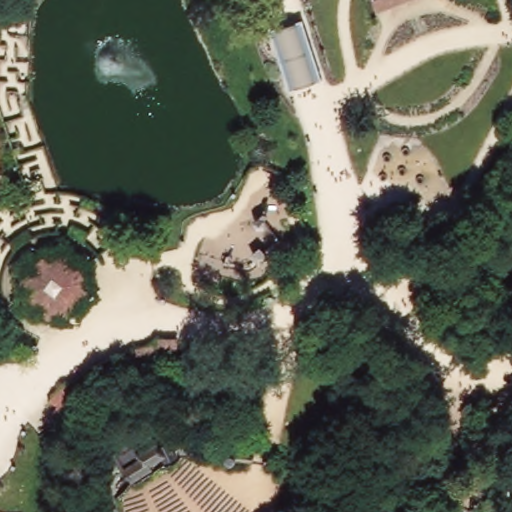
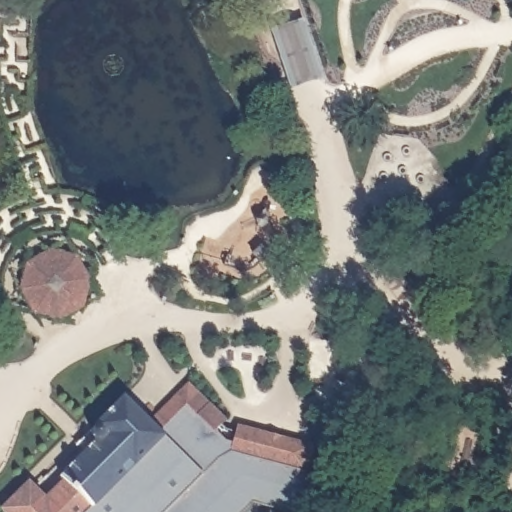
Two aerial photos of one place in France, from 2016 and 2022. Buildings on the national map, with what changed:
unchanged [(373,0),(416,0),(379,14),(373,0)]
unchanged [(272,31),(301,22),(319,79),(291,88),(272,31)]
unchanged [(26,266),(46,250),(75,256),(91,278),(92,301),(72,316),(56,323),(38,318),(20,294),(26,266)]
new [(29,480),(45,496),(62,480),(59,477),(95,440),(92,437),(91,432),(94,426),(124,396),(149,422),(187,382),(226,420),(214,432),(225,442),(231,443),(236,425),(310,442),(294,512),(279,512),(249,504),(242,512),(1,512),(0,511),(0,510),(29,480)]

